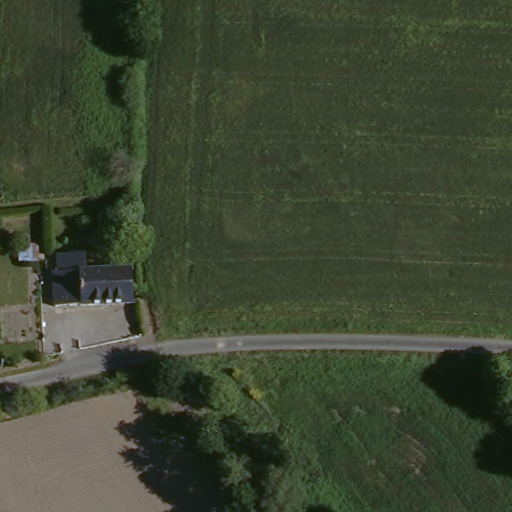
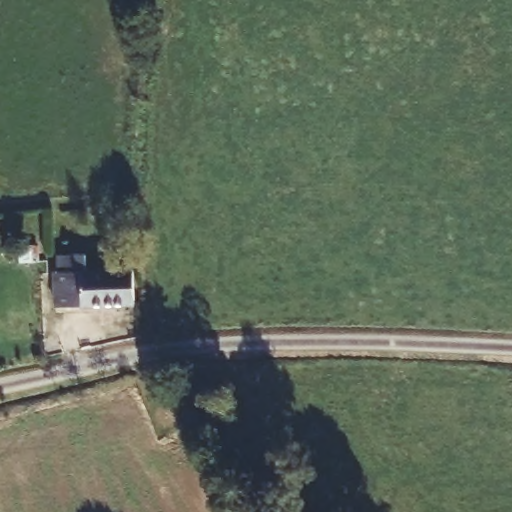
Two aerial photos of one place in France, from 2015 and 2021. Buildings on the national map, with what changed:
unchanged [(64,251),(92,251),(92,268),(139,269),(140,308),(57,306),(59,267),(64,267),(64,251)]

